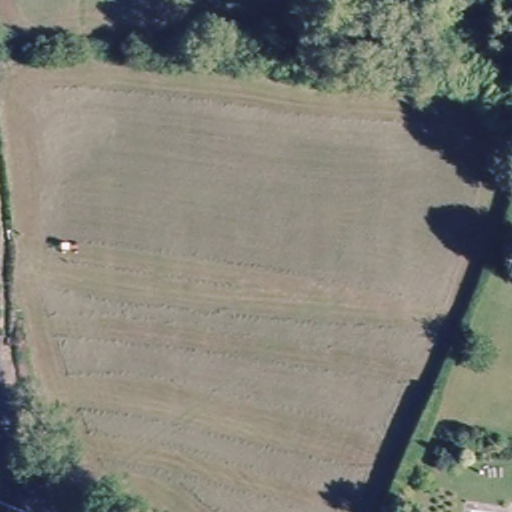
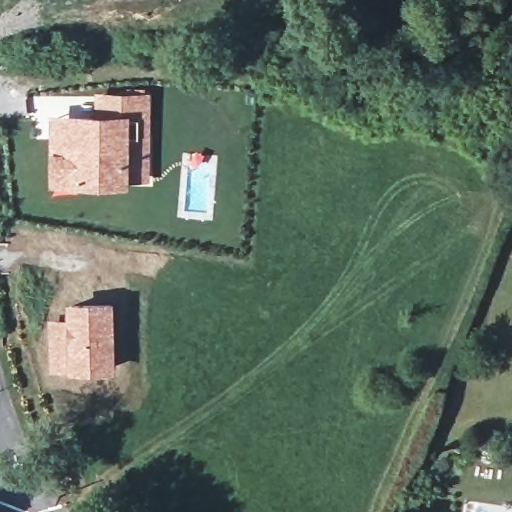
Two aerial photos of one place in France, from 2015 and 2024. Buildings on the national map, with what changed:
new [(95,114),(94,91),(151,93),(150,183),(131,181),(131,189),(51,185),(52,112),(95,114)]
new [(68,316),(68,303),(115,304),(116,371),(71,371),(50,373),(49,317),(68,316)]

